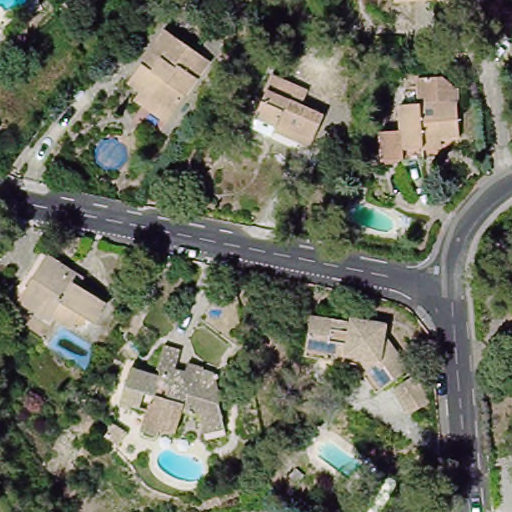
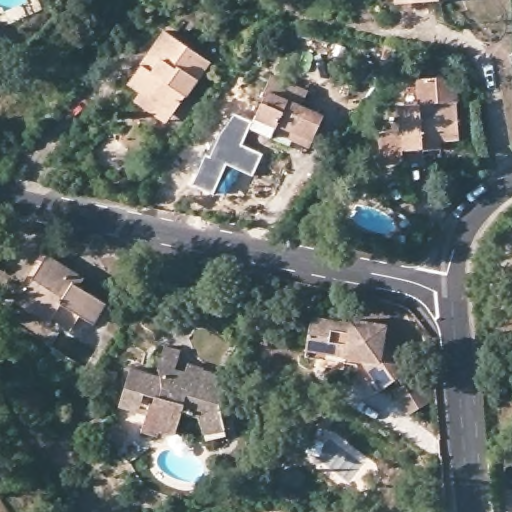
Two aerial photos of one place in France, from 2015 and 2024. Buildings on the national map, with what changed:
unchanged [(133,97),(141,87),(129,79),(164,27),(209,57),(173,109),(166,119),(133,97)]
unchanged [(424,141),(424,150),(404,151),(383,152),(381,122),(402,121),(401,95),(418,94),(416,67),(441,66),(454,77),(459,127),(442,129),(443,139),(424,141)]
unchanged [(274,128),(271,132),(252,124),(268,86),(266,86),(272,71),(300,82),(308,86),(301,102),(323,112),(312,136),(309,144),(274,128)]
unchanged [(14,303),(19,295),(43,256),(65,270),(78,278),(74,286),(100,303),(88,321),(75,313),(65,328),(47,317),(43,322),(14,303)]
unchanged [(334,355),(284,350),(287,310),(326,313),(326,309),(361,313),(360,326),(390,352),(369,375),(364,381),(334,355)]
unchanged [(203,430),(200,420),(198,413),(181,408),(176,427),(166,430),(159,426),(158,432),(142,427),(147,407),(119,399),(129,365),(155,372),(160,370),(158,362),(163,342),(180,346),(176,363),(186,366),(188,358),(200,362),(211,365),(218,385),(221,386),(218,402),(221,415),(223,425),(203,430)]
unchanged [(410,389),(395,402),(375,379),(391,366),(410,389)]
unchanged [(298,481),(291,488),(283,481),(289,473),(298,481)]

